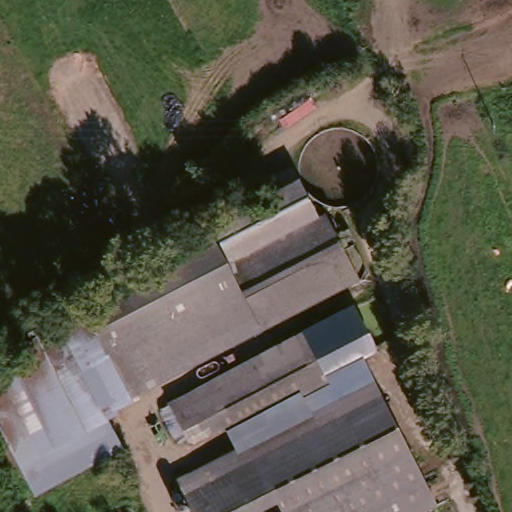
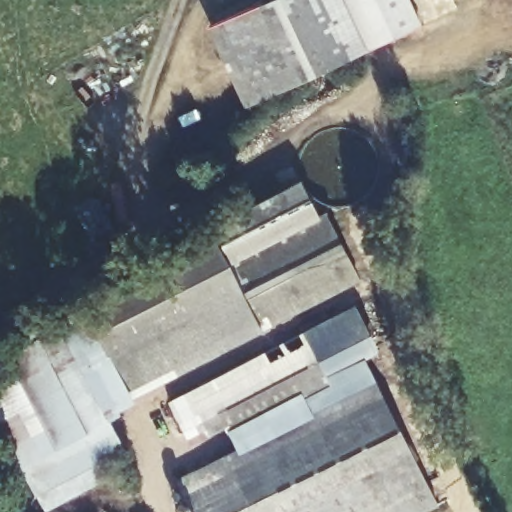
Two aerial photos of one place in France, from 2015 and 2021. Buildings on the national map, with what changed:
new [(244,109),(207,27),(265,0),(410,0),(422,26),(244,109)]
unchanged [(0,344),(221,226),(303,176),(326,214),(330,212),(367,279),(266,330),(142,400),(145,405),(28,464),(0,409),(0,344)]
unchanged [(358,308),(379,350),(369,361),(452,500),(442,504),(427,512),(401,512),(400,511),(398,512),(289,512),(252,447),(242,452),(231,428),(195,446),(174,404),(358,308)]
unchanged [(252,447),(289,512),(196,512),(182,483),(242,452),(252,447)]

